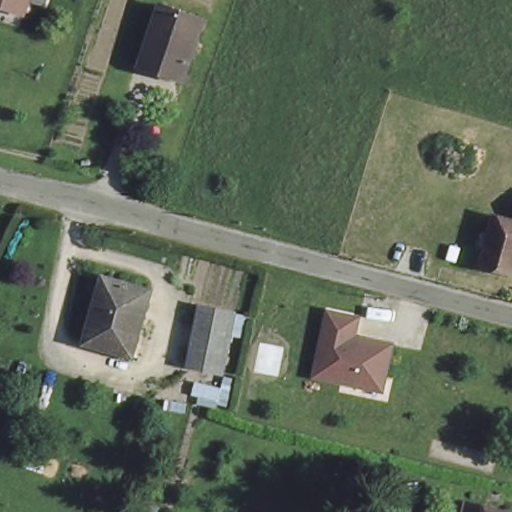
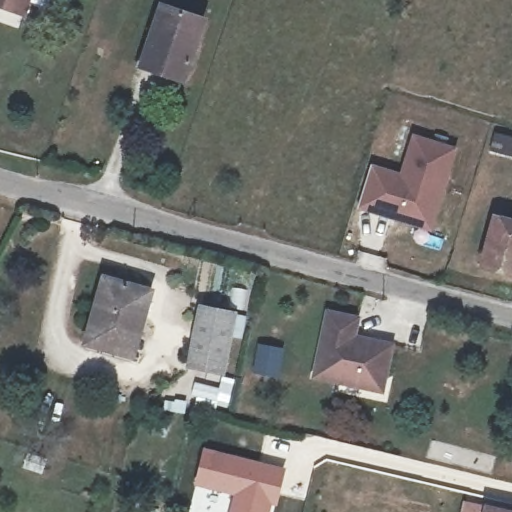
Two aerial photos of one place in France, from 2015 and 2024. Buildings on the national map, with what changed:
unchanged [(5,7),(0,5),(0,0),(29,0),(29,1),(25,14),(5,7)]
unchanged [(202,20),(182,79),(142,66),(162,6),(202,20)]
new [(370,164),(400,172),(412,134),(457,148),(431,232),(357,208),(370,164)]
unchanged [(500,220),(512,222),(512,271),(490,264),(500,220)]
unchanged [(132,351),(87,341),(102,278),(148,286),(132,351)]
unchanged [(226,371),(188,362),(202,302),(237,309),(226,371)]
unchanged [(360,382),(315,372),(329,309),(358,315),(354,333),(392,342),(385,375),(382,387),(360,382)]
new [(257,342),(285,347),(279,378),(250,372),(257,342)]
new [(195,381),(219,387),(222,376),(235,379),(227,407),(191,397),(195,381)]
new [(286,468),(276,506),(273,506),(271,512),(227,512),(231,495),(193,486),(202,446),(286,468)]
unchanged [(502,512),(489,512),(490,509),(502,512)]

